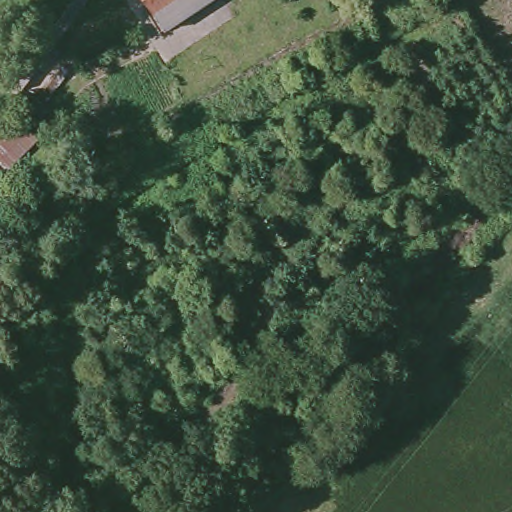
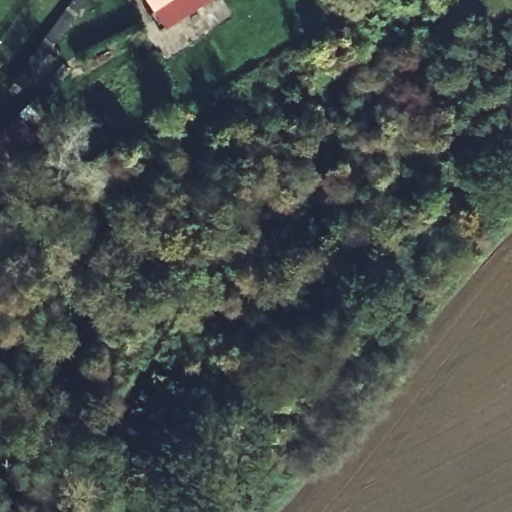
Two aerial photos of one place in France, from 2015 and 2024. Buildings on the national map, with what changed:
unchanged [(165,30),(157,20),(145,0),(214,0),(165,30)]
unchanged [(31,45),(39,35),(46,44),(29,63),(22,55),(31,45)]
unchanged [(32,95),(52,107),(39,122),(45,127),(8,170),(0,164),(0,133),(15,115),(32,95)]

